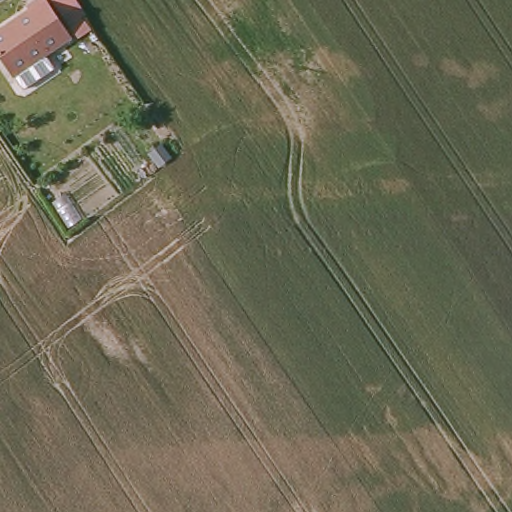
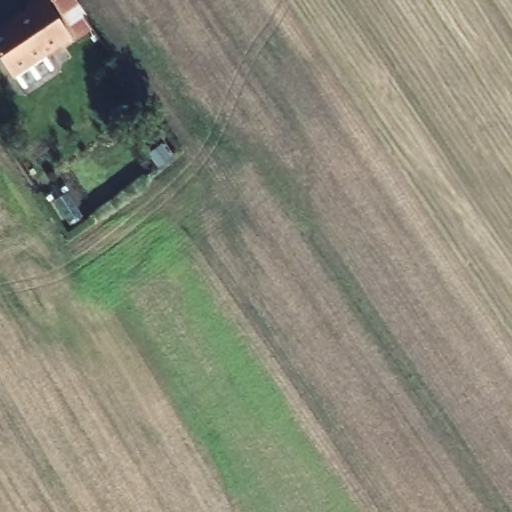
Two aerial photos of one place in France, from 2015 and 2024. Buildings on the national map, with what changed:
unchanged [(0,27),(24,11),(21,7),(32,0),(40,0),(65,37),(6,77),(0,67),(0,27)]
unchanged [(48,1),(47,0),(49,0),(48,1)]

